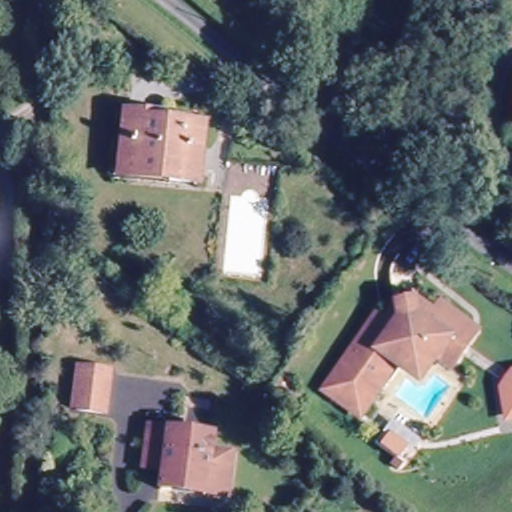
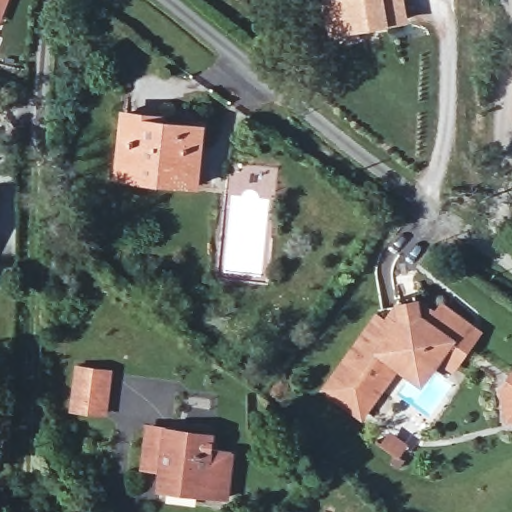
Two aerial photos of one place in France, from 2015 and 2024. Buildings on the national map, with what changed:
new [(0,25),(0,0),(10,0),(1,25),(0,25)]
new [(389,25),(326,35),(321,0),(404,0),(407,22),(389,25)]
unchanged [(114,178),(120,115),(146,117),(146,124),(197,129),(192,185),(114,178)]
unchanged [(345,399),(341,403),(331,396),(340,384),(338,382),(381,323),(392,332),(405,315),(403,303),(415,301),(420,308),(436,320),(447,305),(468,320),(481,328),(473,340),(458,359),(450,372),(436,362),(425,377),(407,364),(403,369),(400,367),(365,414),(356,408),(345,399)]
unchanged [(98,409),(69,406),(73,366),(102,371),(98,409)]
unchanged [(508,405),(505,388),(512,379),(512,408),(508,405)]
unchanged [(139,445),(142,418),(204,427),(202,439),(225,444),(219,487),(155,477),(157,463),(136,460),(139,445)]

